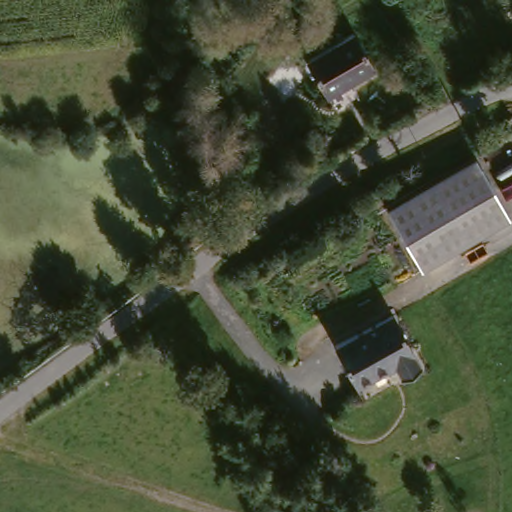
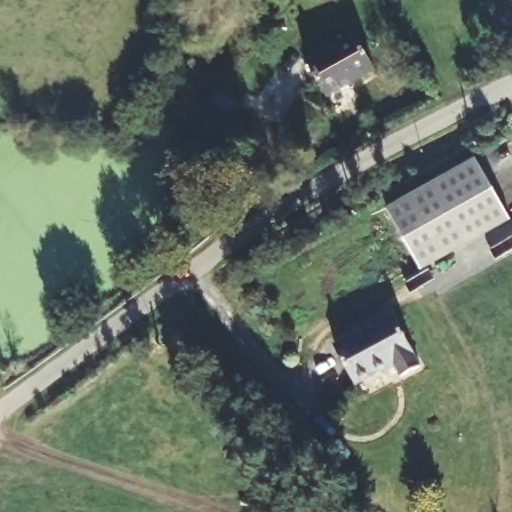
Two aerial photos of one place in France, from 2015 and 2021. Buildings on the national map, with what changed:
unchanged [(379,70),(332,97),(312,61),(358,35),(379,70)]
unchanged [(512,215),(512,221),(426,270),(392,210),(481,160),(512,215)]
unchanged [(426,368),(406,378),(399,365),(361,385),(340,346),(397,315),(426,368)]

